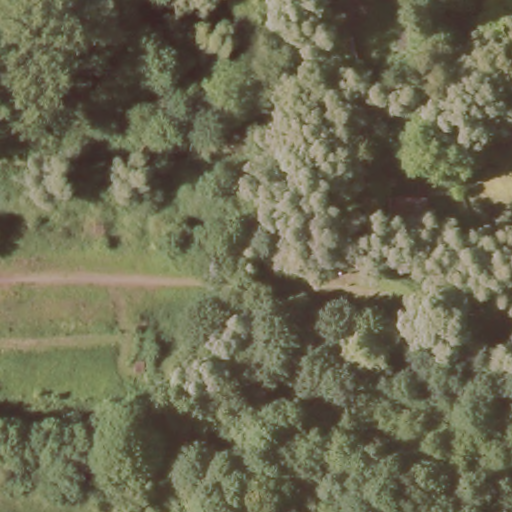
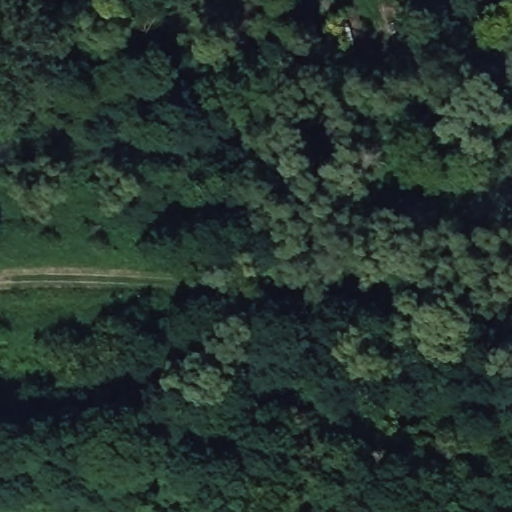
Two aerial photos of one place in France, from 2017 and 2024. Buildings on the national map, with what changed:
unchanged [(399,245),(388,247),(381,202),(409,198),(420,196),(427,229),(414,231),(398,234),(399,245)]

